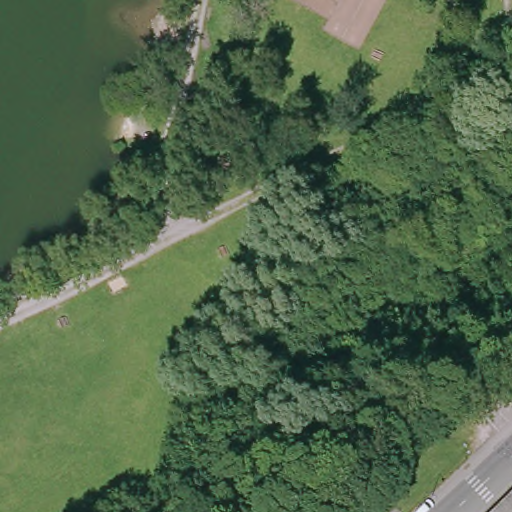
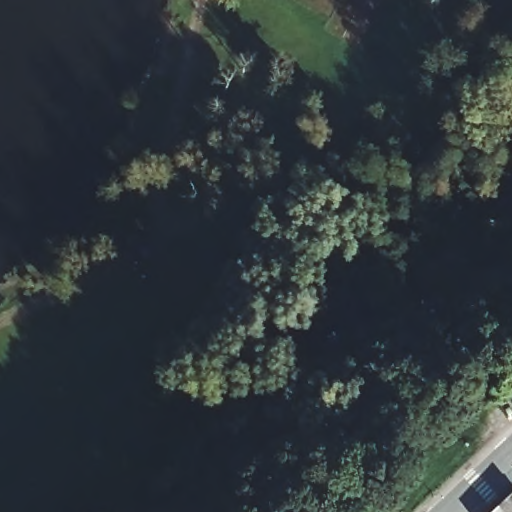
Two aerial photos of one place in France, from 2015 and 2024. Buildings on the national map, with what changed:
unchanged [(512,493),(512,512),(492,512),(496,509),(512,493)]

